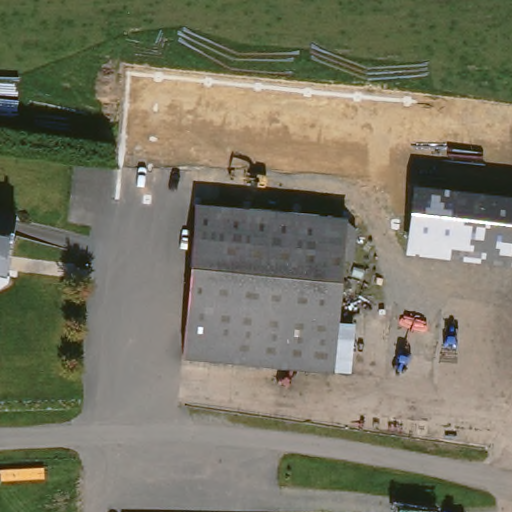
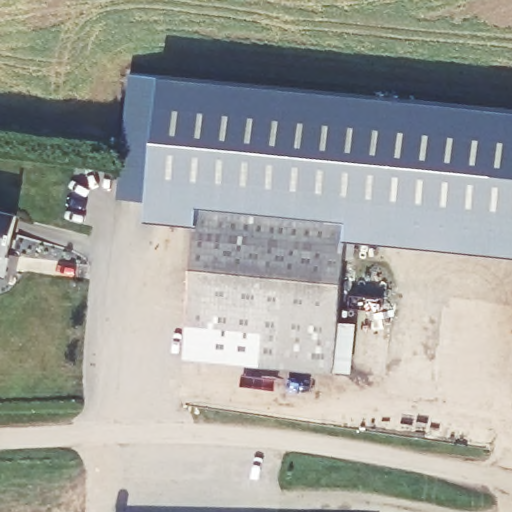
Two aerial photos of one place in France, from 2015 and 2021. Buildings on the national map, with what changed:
new [(344,220),(192,211),(192,223),(148,219),(148,197),(118,195),(130,74),(161,76),(512,111),(512,255),(343,238),(344,220)]
unchanged [(192,211),(344,220),(339,313),(189,301),(192,211)]
unchanged [(0,257),(0,215),(14,217),(7,259),(0,257)]
unchanged [(336,373),(186,362),(189,301),(339,313),(336,373)]

